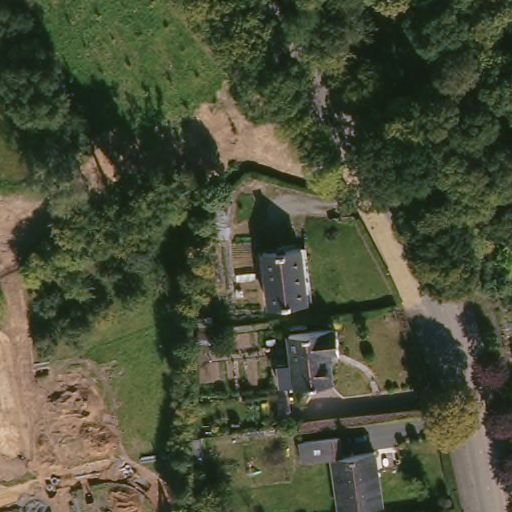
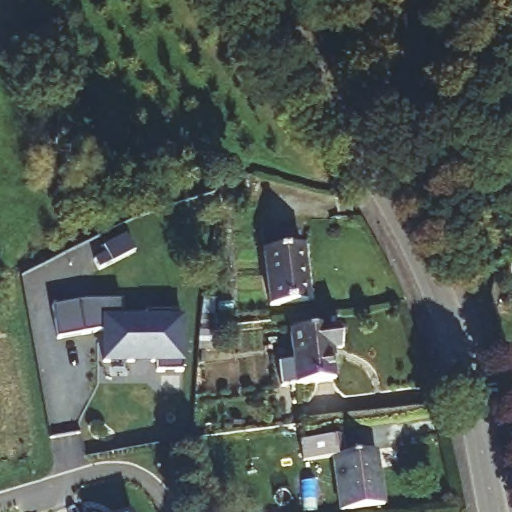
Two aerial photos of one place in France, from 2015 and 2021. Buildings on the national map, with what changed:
unchanged [(302,251),(312,302),(269,311),(260,260),(302,251)]
new [(125,306),(125,323),(147,323),(147,317),(179,317),(179,324),(184,324),(184,351),(185,377),(161,377),(160,367),(107,367),(107,337),(62,345),(56,312),(88,306),(125,306)]
unchanged [(277,371),(292,368),(287,342),(334,333),(338,352),(330,353),(336,383),(297,390),(282,393),(277,371)]
unchanged [(214,338),(214,356),(201,356),(201,340),(214,338)]
demolished [(224,346),(224,363),(211,363),(211,347),(224,346)]
unchanged [(341,457),(371,452),(383,507),(360,512),(341,512),(330,460),(299,465),(295,445),(337,438),(341,457)]

